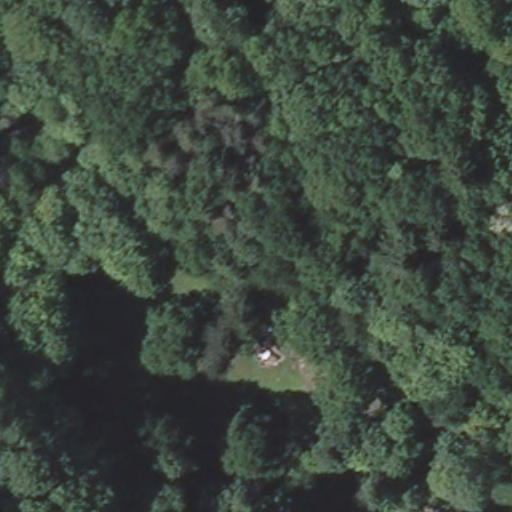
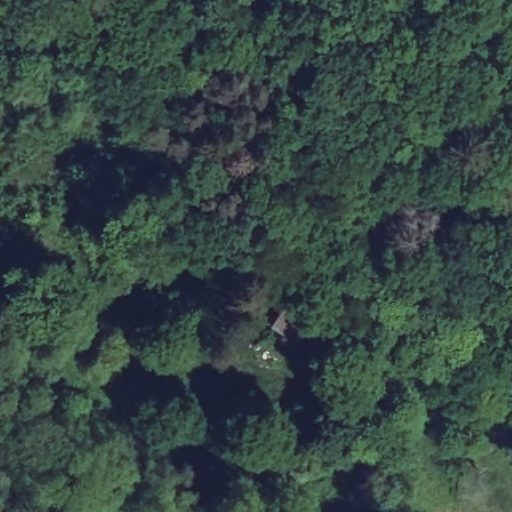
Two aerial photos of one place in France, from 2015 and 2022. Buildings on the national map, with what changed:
unchanged [(294,295),(320,315),(295,350),(268,334),(294,295)]

